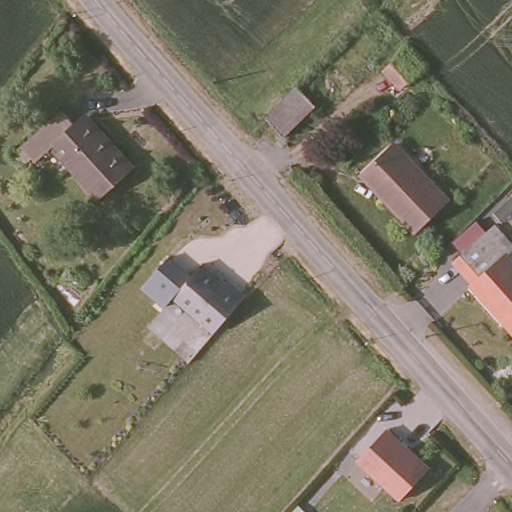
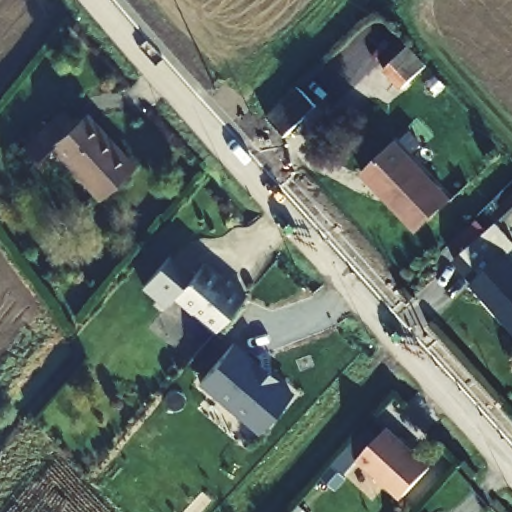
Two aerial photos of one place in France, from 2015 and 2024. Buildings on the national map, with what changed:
unchanged [(408,90),(388,70),(414,46),(433,65),(408,90)]
unchanged [(289,139),(273,122),(305,90),(322,107),(289,139)]
unchanged [(65,155),(50,170),(36,155),(76,117),(88,130),(96,124),(121,149),(128,144),(148,169),(113,202),(65,155)]
unchanged [(453,200),(419,230),(384,192),(380,195),(364,177),(401,145),(453,200)]
unchanged [(474,281),(478,278),(460,257),(503,219),(512,229),(512,248),(509,251),(512,255),(512,323),(474,281)]
new [(171,295),(174,297),(166,306),(143,287),(171,254),(191,271),(171,295)]
unchanged [(201,321),(171,295),(201,260),(224,280),(227,278),(246,295),(213,332),(201,321)]
new [(295,391),(259,435),(198,384),(235,341),(295,391)]
unchanged [(356,457),(385,425),(428,463),(398,495),(356,457)]

